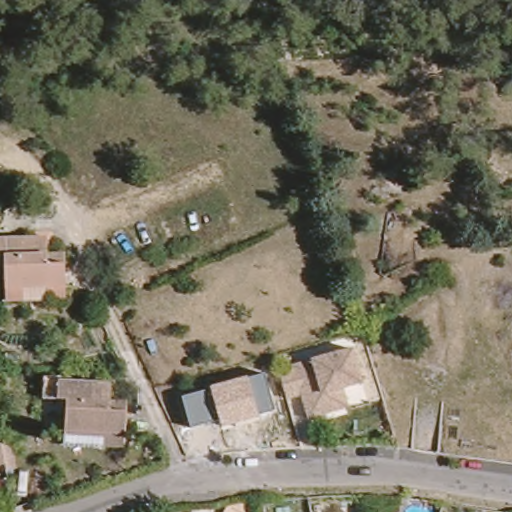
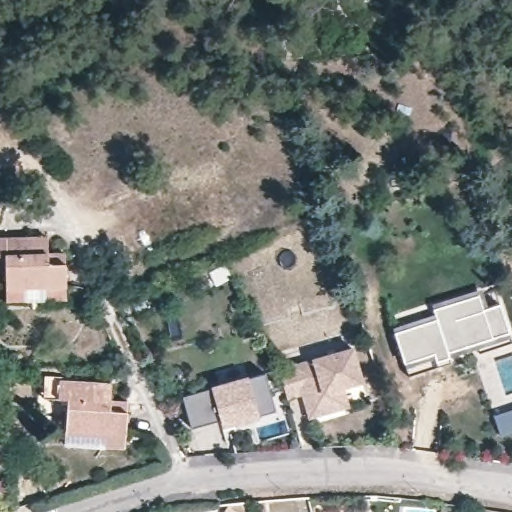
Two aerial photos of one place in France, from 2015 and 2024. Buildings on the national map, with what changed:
unchanged [(8,294),(6,250),(0,250),(0,235),(37,234),(51,234),(51,242),(52,248),(69,248),(70,281),(70,292),(51,292),(8,294)]
new [(435,321),(433,309),(479,295),(484,309),(499,304),(508,335),(448,353),(449,358),(436,362),(434,354),(404,364),(395,334),(435,321)]
unchanged [(362,381),(339,388),(345,407),(308,418),(301,396),(283,399),(275,369),(351,349),(362,381)]
unchanged [(108,437),(64,434),(67,391),(58,390),(59,374),(100,378),(112,378),(112,388),(112,394),(129,395),(128,427),(127,439),(108,437)]
unchanged [(182,398),(211,388),(249,378),(264,374),(276,411),(258,416),(259,420),(222,430),(219,420),(191,428),(182,398)]
new [(512,409),(512,432),(500,437),(493,416),(512,409)]

